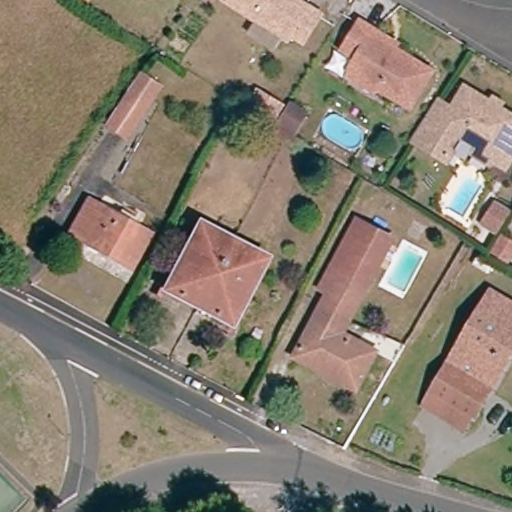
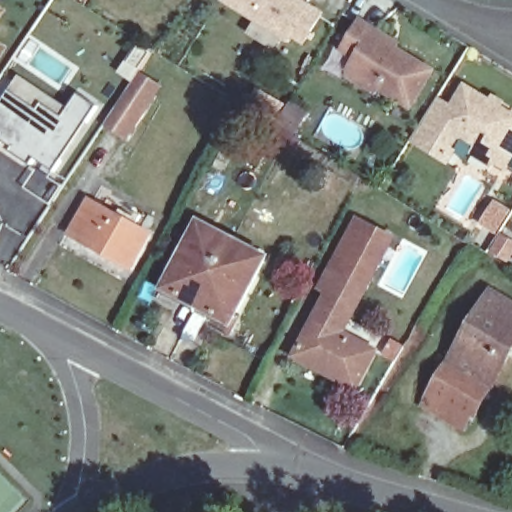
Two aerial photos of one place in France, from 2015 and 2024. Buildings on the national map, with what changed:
unchanged [(297,2),(319,16),(303,45),(290,36),(286,42),(223,3),(224,0),(298,0),(297,2)]
unchanged [(389,35),(396,40),(393,44),(432,69),(409,105),(378,85),(371,86),(349,74),(348,66),(355,55),(342,46),(359,17),(389,35)]
unchanged [(158,88),(127,135),(106,122),(137,75),(158,88)]
new [(19,77),(69,110),(79,95),(97,107),(54,171),(35,160),(30,167),(0,147),(0,105),(9,91),(19,77)]
unchanged [(482,155),(487,146),(472,137),(466,140),(453,160),(421,141),(446,100),(461,109),(474,87),(512,110),(512,168),(501,160),(498,165),(482,155)]
unchanged [(275,119),(249,104),(258,90),(284,105),(275,119)]
unchanged [(89,201),(149,235),(131,267),(70,234),(89,201)]
unchanged [(511,214),(498,235),(483,225),(496,204),(511,214)]
unchanged [(199,223),(267,258),(231,324),(165,288),(199,223)]
unchanged [(329,298),(320,293),(332,272),(335,264),(349,239),(354,226),(392,245),(379,272),(343,340),(375,357),(357,391),(322,372),(297,360),(301,354),(329,298)]
unchanged [(512,243),(512,257),(509,263),(493,253),(503,237),(512,243)]
unchanged [(424,405),(433,390),(491,293),(512,307),(512,352),(474,415),(471,413),(462,427),(424,405)]

